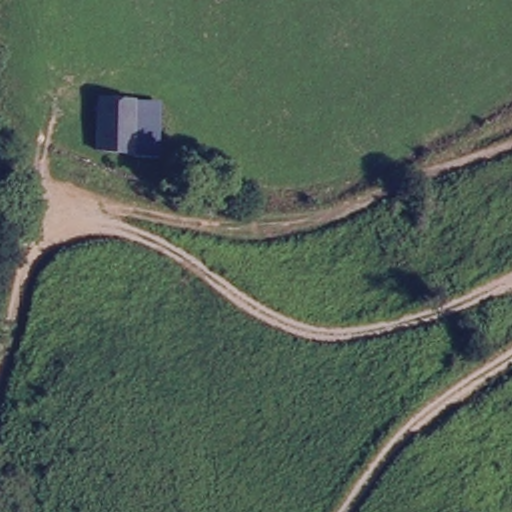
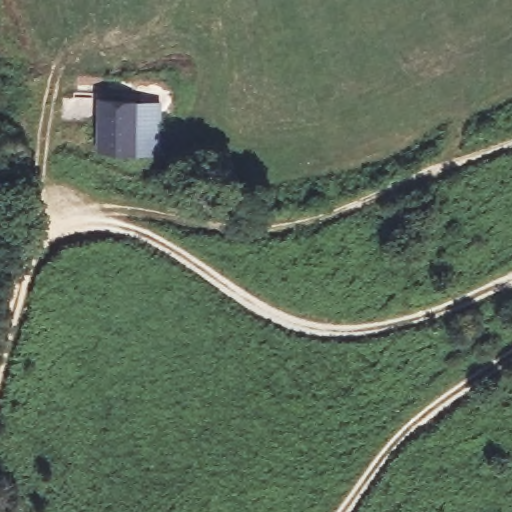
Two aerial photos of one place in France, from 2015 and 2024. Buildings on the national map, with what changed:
unchanged [(132,104),(155,101),(155,157),(131,157),(132,104)]
unchanged [(92,158),(92,105),(132,104),(131,157),(92,158)]

